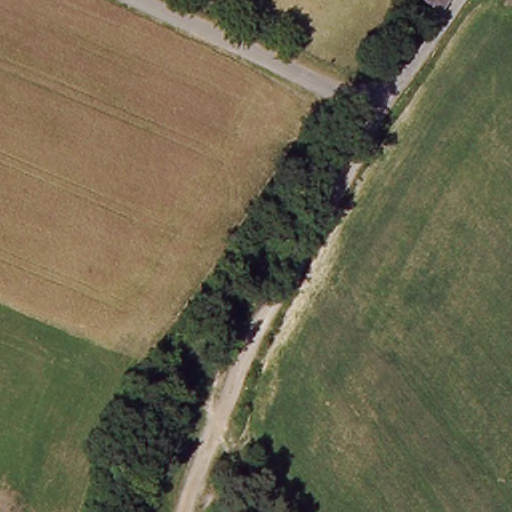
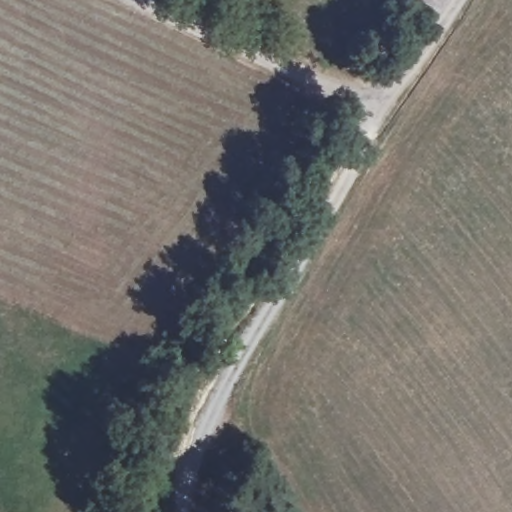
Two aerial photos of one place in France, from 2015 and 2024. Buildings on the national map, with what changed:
unchanged [(443,0),(439,5),(429,0),(443,0)]

